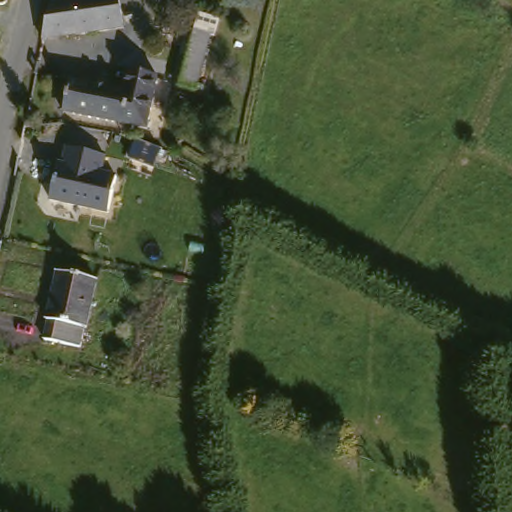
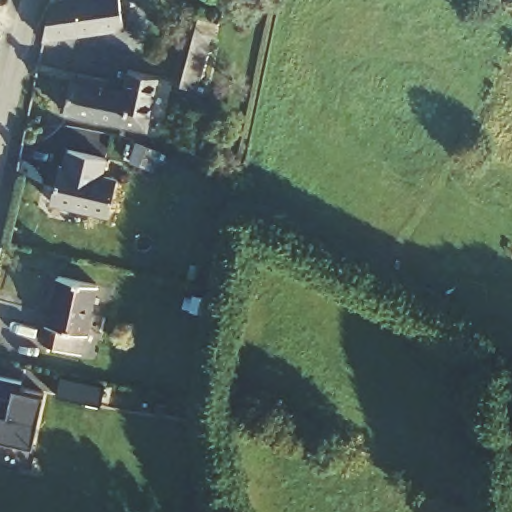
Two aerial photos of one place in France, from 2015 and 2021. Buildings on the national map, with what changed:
unchanged [(61,0),(110,0),(110,1),(114,0),(124,0),(125,15),(126,21),(125,28),(126,38),(111,40),(55,41),(41,40),(50,2),(56,2),(61,1),(61,0)]
unchanged [(198,35),(217,41),(201,93),(184,88),(198,35)]
unchanged [(140,131),(131,128),(102,121),(73,116),(81,83),(85,83),(87,77),(122,88),(121,93),(130,96),(133,86),(136,74),(163,83),(160,93),(158,104),(151,135),(140,131)]
unchanged [(66,145),(114,156),(111,173),(125,176),(116,212),(53,196),(66,145)]
unchanged [(98,284),(86,351),(49,346),(60,279),(98,284)]
demolished [(11,377),(9,376),(0,410),(0,357),(2,350),(17,354),(11,377)]
new [(0,374),(21,379),(20,385),(46,391),(34,443),(0,435),(0,374)]

